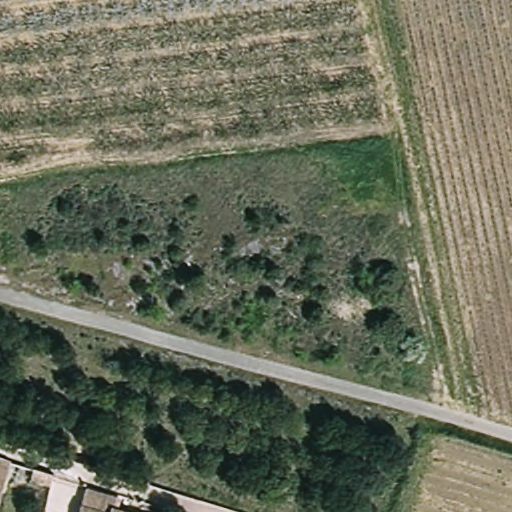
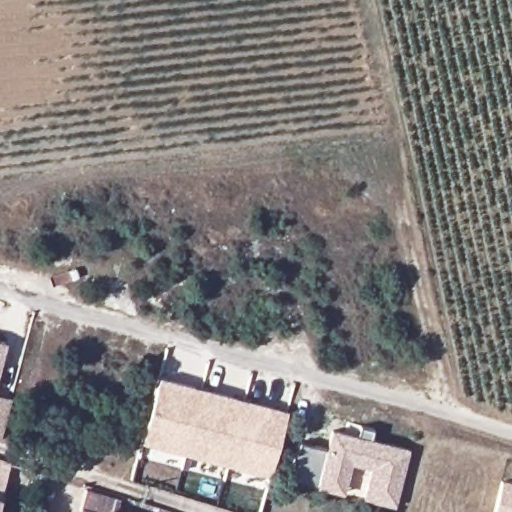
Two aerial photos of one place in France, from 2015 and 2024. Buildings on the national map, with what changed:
new [(0,370),(0,341),(6,343),(0,370)]
new [(288,412),(270,476),(141,442),(158,377),(288,412)]
new [(0,439),(0,396),(11,399),(0,439)]
new [(343,492),(291,479),(300,441),(326,447),(331,428),(357,434),(359,424),(374,428),(371,438),(408,447),(394,505),(361,496),(369,465),(351,463),(343,492)]
unchanged [(0,511),(0,460),(12,464),(0,511)]
new [(500,480),(512,482),(512,512),(492,512),(500,480)]
unchanged [(81,505),(87,487),(116,496),(113,507),(129,512),(79,512),(81,505)]

